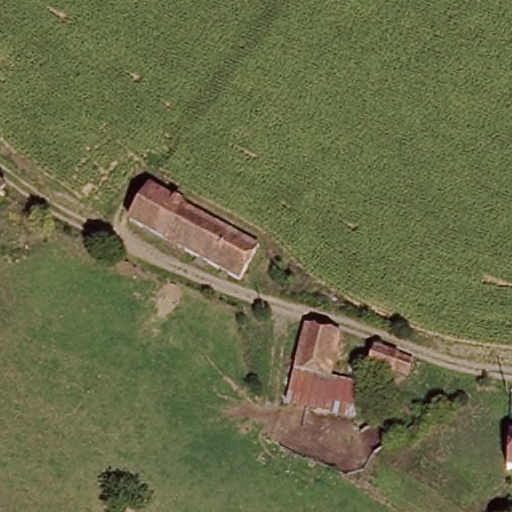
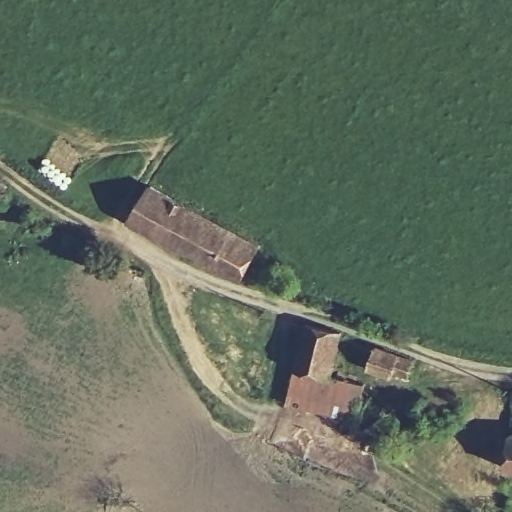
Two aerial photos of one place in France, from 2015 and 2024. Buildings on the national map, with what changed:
unchanged [(236,277),(126,217),(146,183),(254,243),(236,277)]
unchanged [(28,209),(19,227),(0,218),(0,184),(9,189),(5,197),(28,209)]
unchanged [(289,367),(298,320),(333,328),(322,373),(289,367)]
unchanged [(376,345),(399,351),(414,358),(406,377),(393,373),(390,378),(369,370),(376,345)]
unchanged [(284,402),(289,367),(322,373),(361,380),(354,414),(284,402)]
unchanged [(512,433),(512,467),(507,467),(512,433)]

